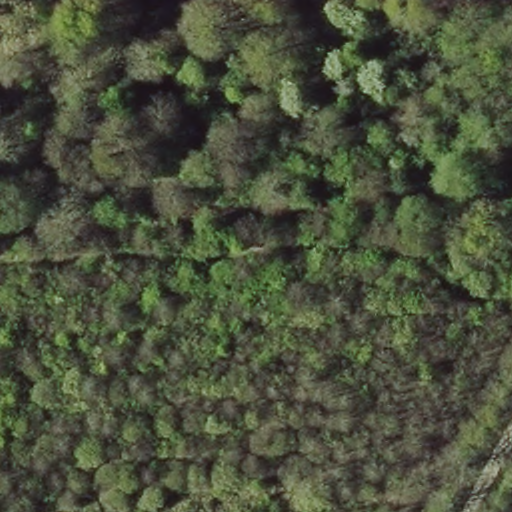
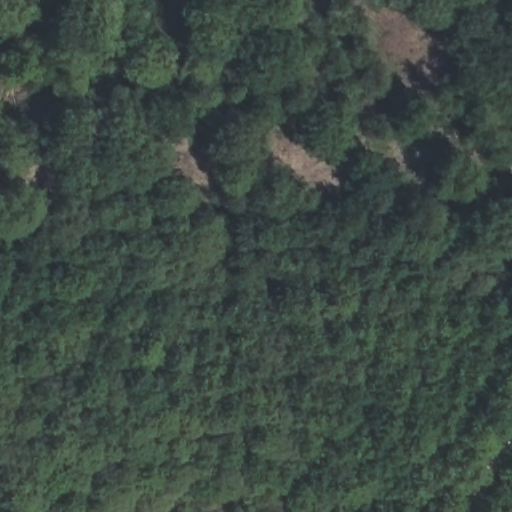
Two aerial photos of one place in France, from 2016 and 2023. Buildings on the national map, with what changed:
[]

